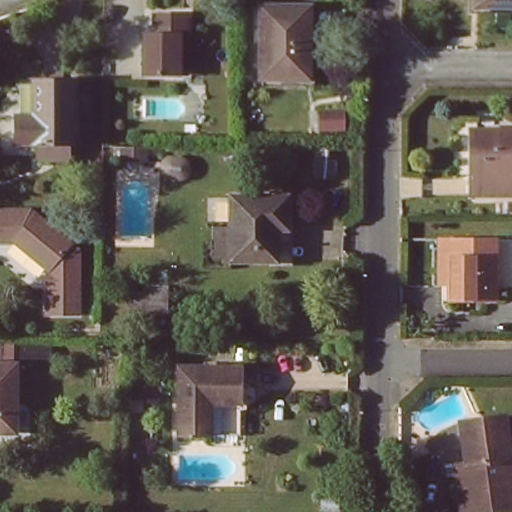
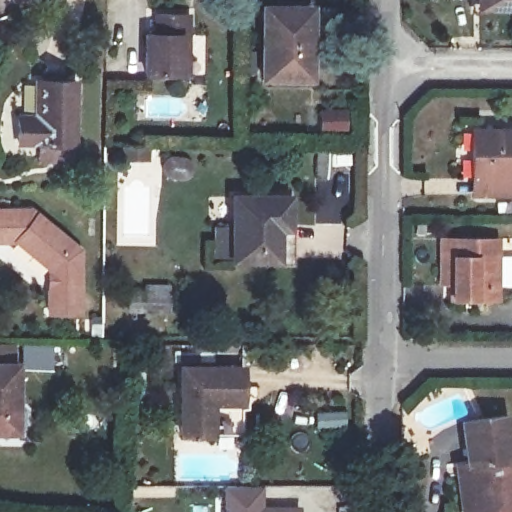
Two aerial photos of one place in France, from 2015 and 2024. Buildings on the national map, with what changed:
unchanged [(478,1),(478,0),(512,0),(512,2),(478,1)]
unchanged [(305,6),(303,78),(259,77),(261,7),(305,6)]
unchanged [(178,78),(141,75),(145,36),(151,37),(153,15),(188,16),(186,38),(186,79),(178,78)]
unchanged [(70,144),(14,143),(15,116),(31,117),(32,82),(70,82),(70,144)]
unchanged [(512,129),(512,194),(467,192),(470,127),(512,129)]
unchanged [(270,261),(227,260),(228,193),(281,193),(280,225),(281,261),(270,261)]
unchanged [(82,250),(83,314),(53,314),(51,289),(57,285),(58,275),(53,272),(53,267),(18,240),(0,240),(0,210),(35,211),(82,250)]
unchanged [(497,299),(450,297),(450,283),(436,283),(437,235),(452,235),(499,237),(497,299)]
unchanged [(173,319),(130,319),(130,298),(173,298),(173,319)]
unchanged [(13,429),(0,429),(0,359),(13,359),(13,429)]
unchanged [(238,364),(238,402),(208,402),(208,434),(172,433),(173,365),(238,364)]
unchanged [(456,494),(452,457),(461,455),(457,420),(501,417),(512,512),(458,512),(456,494)]
new [(225,491),(268,491),(267,512),(225,512),(225,491)]

